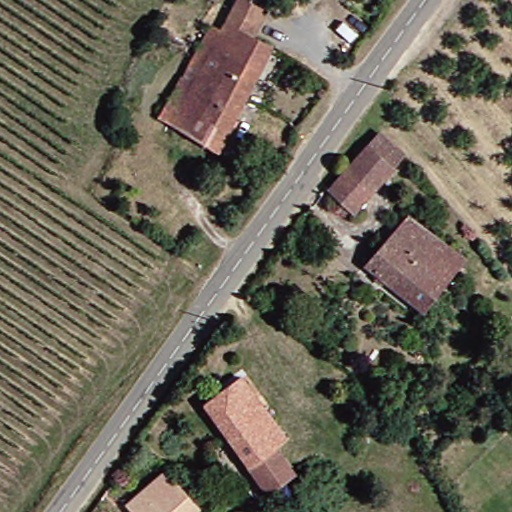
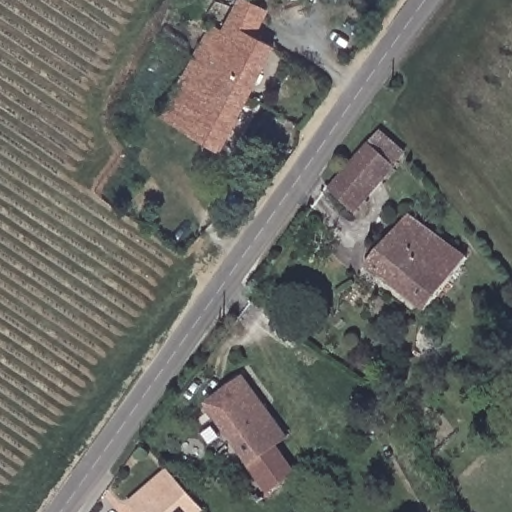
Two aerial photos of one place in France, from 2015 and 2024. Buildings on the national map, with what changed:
unchanged [(224,146),(169,115),(220,27),(229,32),(246,0),(251,0),(269,9),(256,32),(278,44),(224,146)]
unchanged [(355,211),(332,184),(386,132),(407,157),(355,211)]
unchanged [(374,263),(415,213),(473,255),(433,308),(374,263)]
unchanged [(247,370),(287,428),(275,437),(250,454),(210,395),(247,370)]
unchanged [(306,480),(280,498),(250,454),(275,437),(306,480)]
unchanged [(178,478),(197,500),(189,512),(134,512),(130,508),(178,478)]

